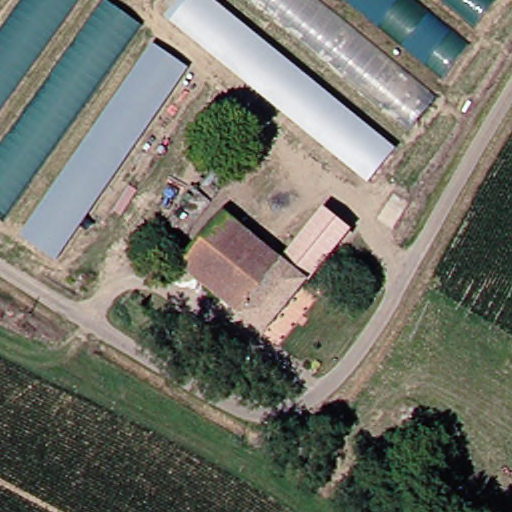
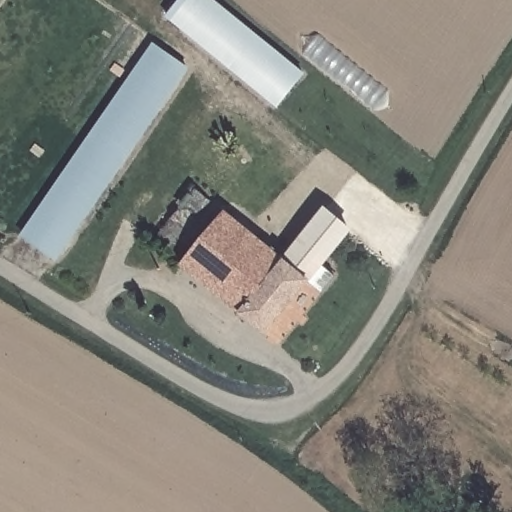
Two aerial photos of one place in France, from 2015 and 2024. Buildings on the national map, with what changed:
demolished [(4,216),(0,213),(0,24),(17,0),(111,0),(141,21),(4,216)]
unchanged [(387,147),(358,179),(159,19),(176,0),(205,0),(387,147)]
demolished [(422,101),(392,132),(234,0),(301,0),(422,101)]
demolished [(453,49),(421,85),(323,0),(395,0),(453,49)]
demolished [(460,29),(425,0),(485,0),(460,29)]
unchanged [(9,231),(144,45),(176,70),(66,219),(40,254),(32,248),(9,231)]
unchanged [(178,255),(183,259),(218,217),(275,266),(316,219),(336,235),(251,336),(174,270),(169,266),(178,255)]

